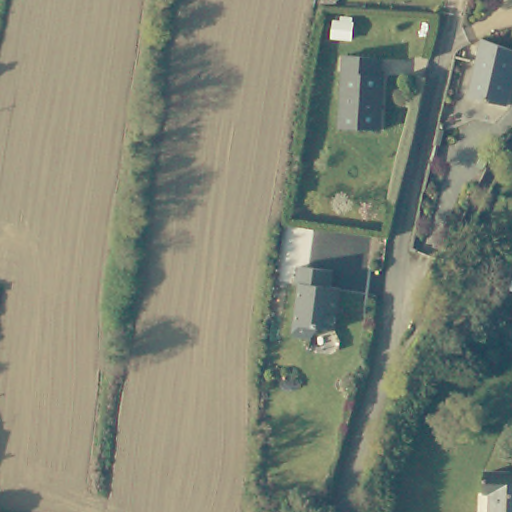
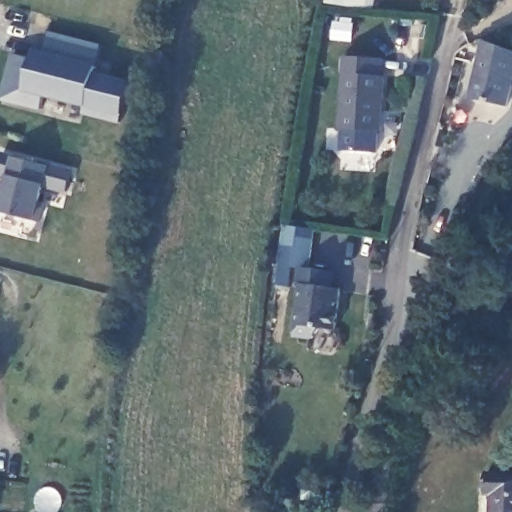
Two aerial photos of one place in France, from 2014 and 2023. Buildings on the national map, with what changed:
new [(96,71),(131,80),(120,123),(81,113),(85,105),(44,95),(40,108),(0,98),(0,91),(10,51),(31,57),(33,46),(45,50),(49,29),(102,42),(96,71)]
unchanged [(509,107),(472,98),(486,41),(512,50),(512,94),(509,107)]
unchanged [(347,55),(383,60),(381,78),(384,78),(376,132),(336,126),(347,55)]
new [(0,174),(0,160),(3,151),(16,153),(15,155),(73,168),(66,191),(44,187),(36,219),(0,211),(0,201),(7,176),(0,174)]
unchanged [(331,295),(339,297),(332,339),(316,336),(309,346),(291,343),(300,290),(297,290),(300,274),(334,281),(331,295)]
unchanged [(508,335),(512,321),(512,322),(512,336),(508,335)]
unchanged [(491,512),(492,494),(485,494),(486,474),(512,475),(512,512),(491,512)]

